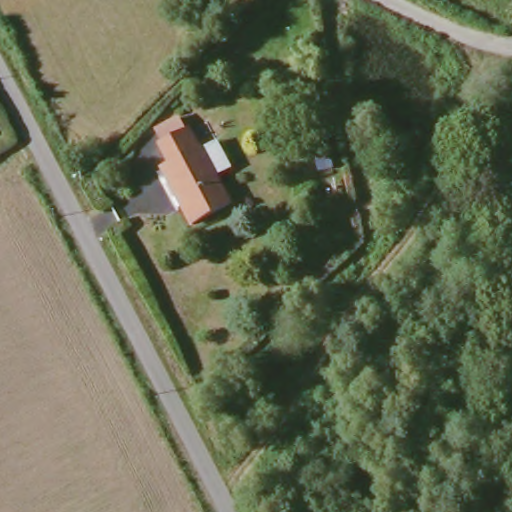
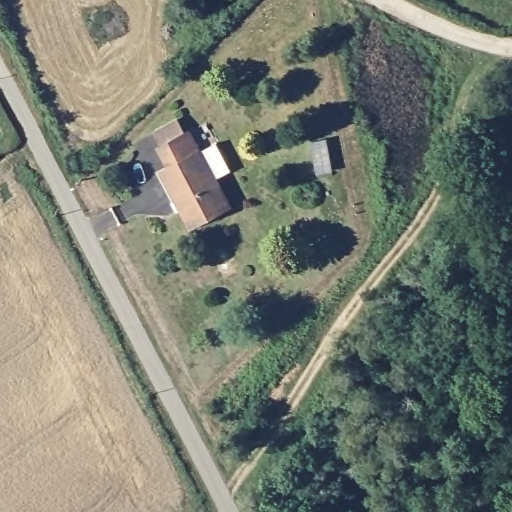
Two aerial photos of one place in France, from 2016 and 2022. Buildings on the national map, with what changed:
unchanged [(342,147),(327,150),(317,116),(332,113),(342,147)]
unchanged [(195,226),(187,211),(180,214),(173,202),(180,199),(163,174),(171,169),(160,148),(167,144),(160,131),(182,119),(190,133),(195,130),(205,150),(220,142),(236,172),(219,179),(235,202),(195,226)]

